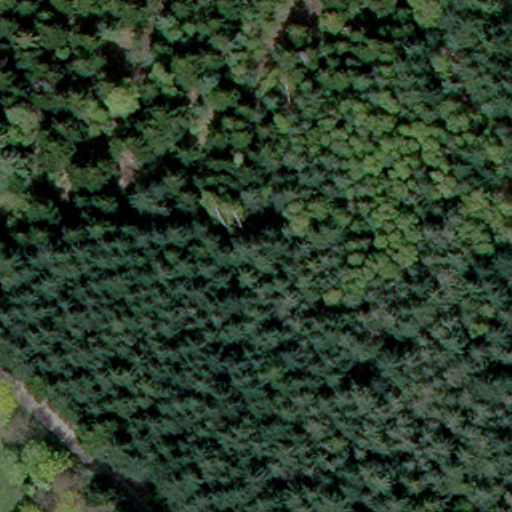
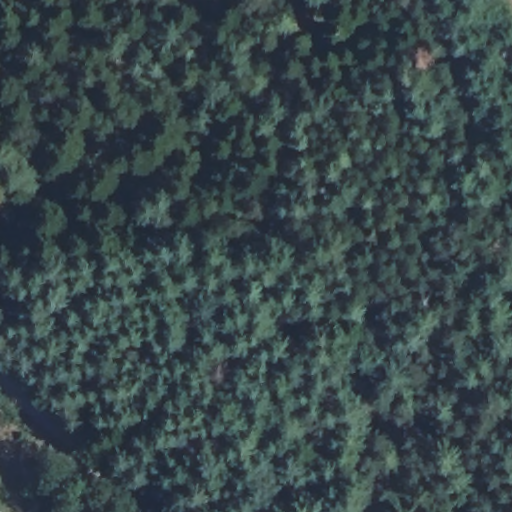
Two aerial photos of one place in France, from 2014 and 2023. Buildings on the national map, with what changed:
[]

